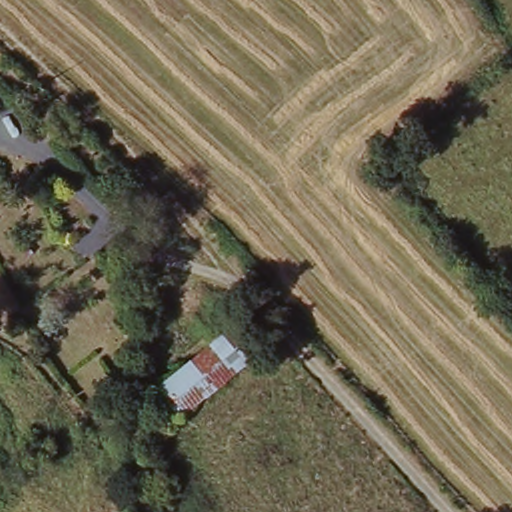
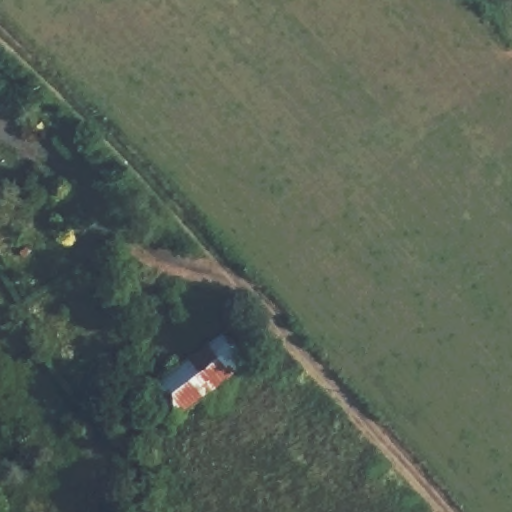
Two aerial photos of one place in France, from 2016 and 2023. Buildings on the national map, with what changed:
unchanged [(151,389),(223,335),(242,361),(201,397),(198,395),(172,418),(151,389)]

